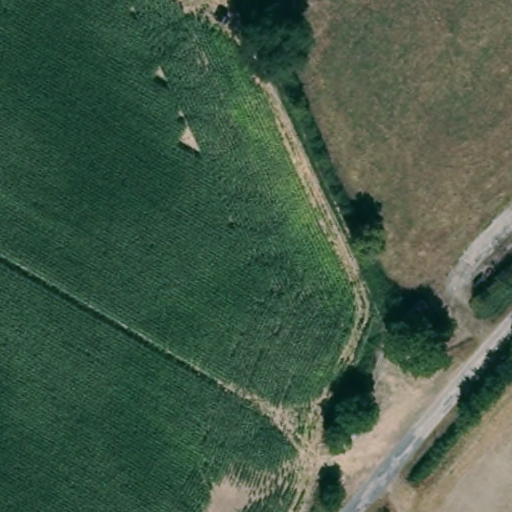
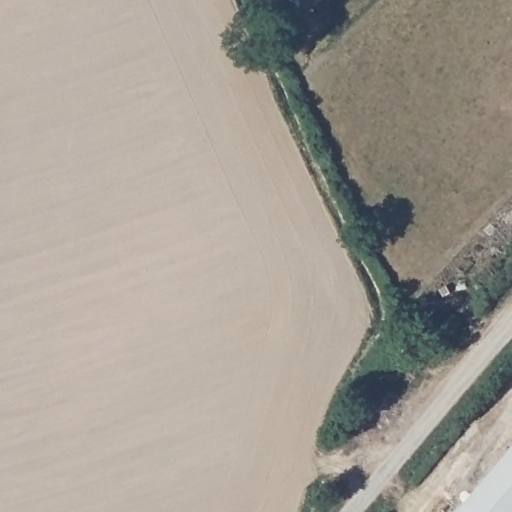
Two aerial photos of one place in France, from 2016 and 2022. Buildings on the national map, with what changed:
new [(512,446),(512,512),(456,512),(512,446)]

